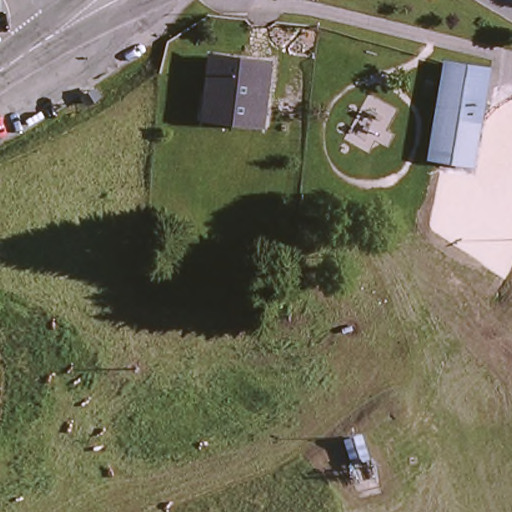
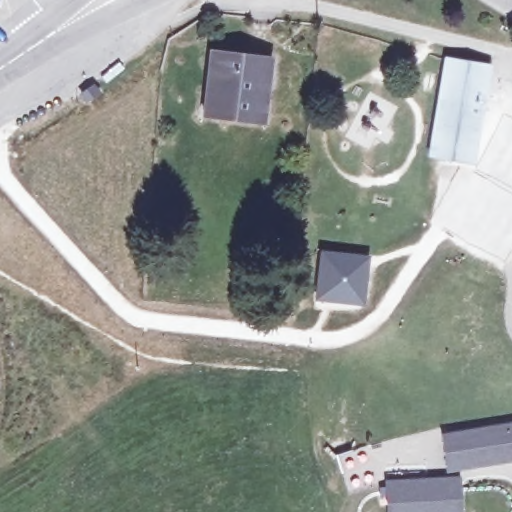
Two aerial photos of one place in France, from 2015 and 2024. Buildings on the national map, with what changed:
unchanged [(268,126),(204,118),(214,44),(276,51),(268,126)]
unchanged [(495,62),(479,155),(439,147),(456,55),(495,62)]
new [(369,255),(364,306),(314,302),(319,250),(369,255)]
demolished [(335,268),(334,285),(298,281),(299,266),(335,268)]
new [(512,422),(512,463),(447,473),(441,435),(512,422)]
demolished [(368,431),(375,455),(355,461),(347,436),(368,431)]
new [(463,512),(387,512),(385,481),(460,477),(463,512)]

